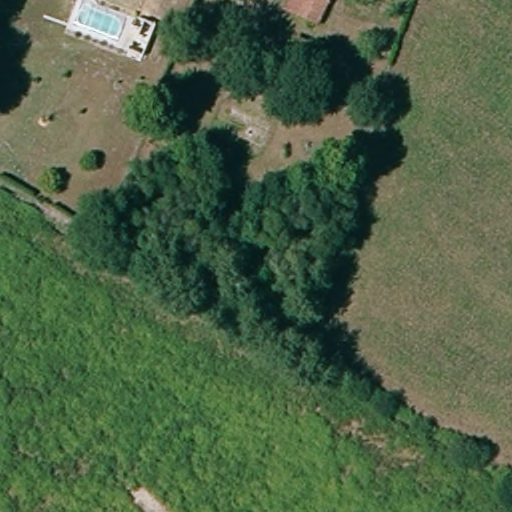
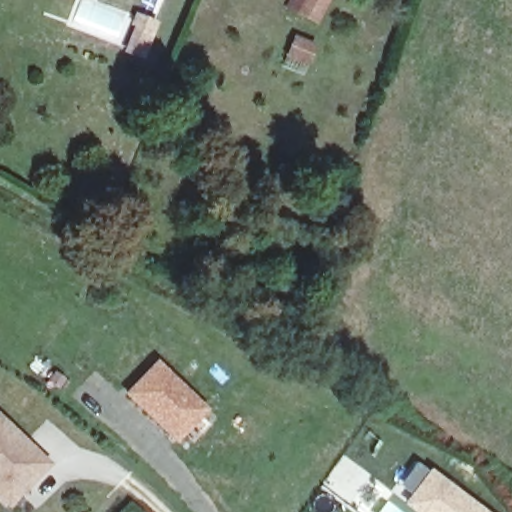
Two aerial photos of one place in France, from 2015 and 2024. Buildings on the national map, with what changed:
new [(288,0),(328,0),(317,24),(284,9),(288,0)]
demolished [(300,0),(332,0),(324,15),(299,3),(300,0)]
new [(132,29),(136,19),(144,22),(155,27),(143,58),(128,52),(136,30),(132,29)]
unchanged [(299,44),(316,53),(308,69),(290,60),(299,44)]
new [(209,409),(176,443),(123,393),(156,359),(209,409)]
new [(9,508),(0,500),(0,414),(51,463),(9,508)]
new [(429,467),(488,512),(412,512),(402,504),(411,492),(398,484),(415,461),(427,470),(429,467)]

